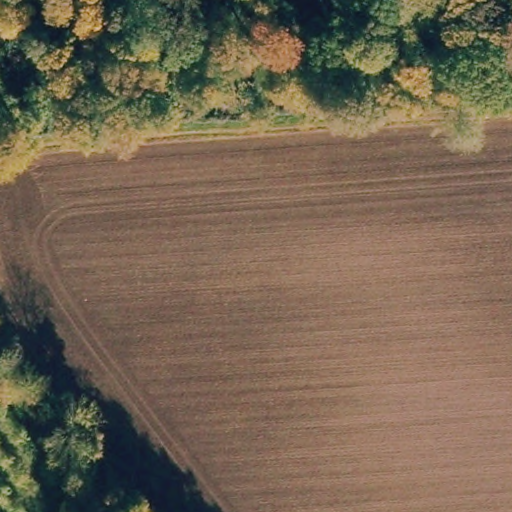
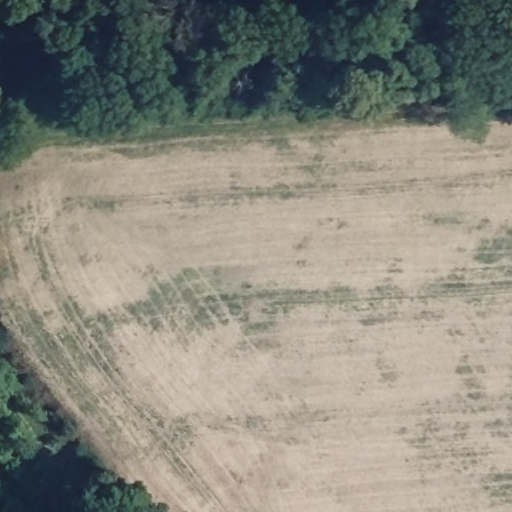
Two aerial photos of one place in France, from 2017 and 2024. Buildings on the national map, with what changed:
unchanged [(512,2),(512,32),(488,36),(483,6),(512,2)]

